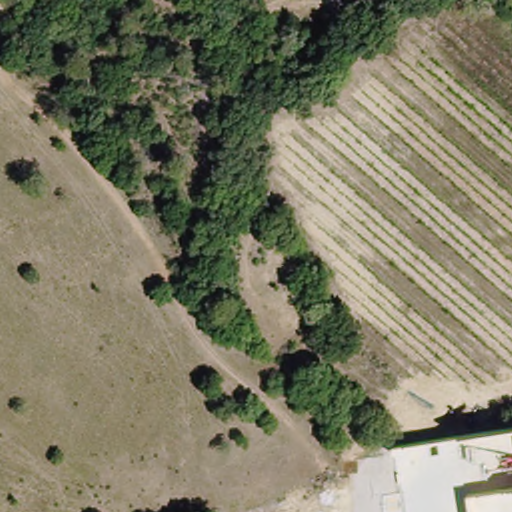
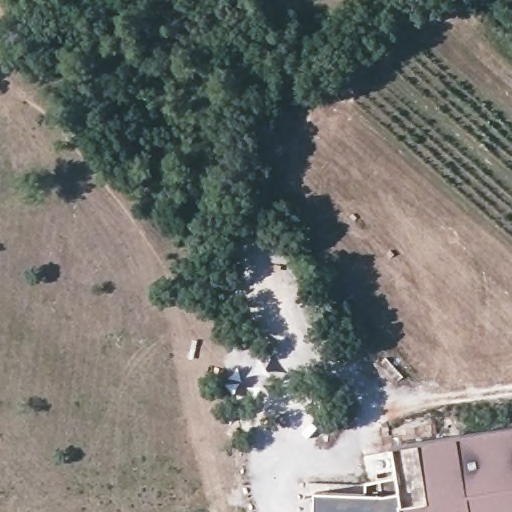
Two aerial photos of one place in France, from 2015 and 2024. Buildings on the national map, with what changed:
new [(316,495),(366,496),(366,483),(398,474),(395,450),(422,444),(512,428),(512,512),(315,512),(316,495)]

